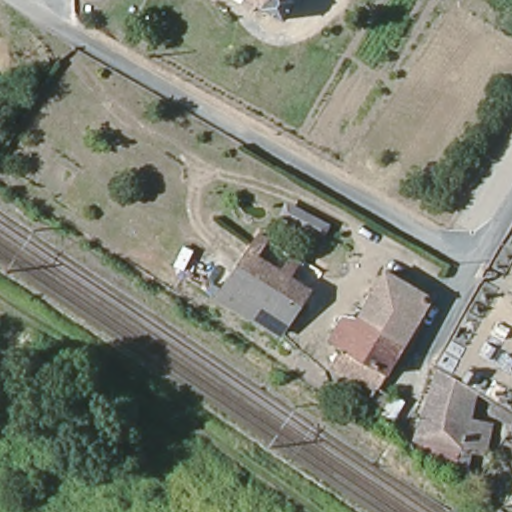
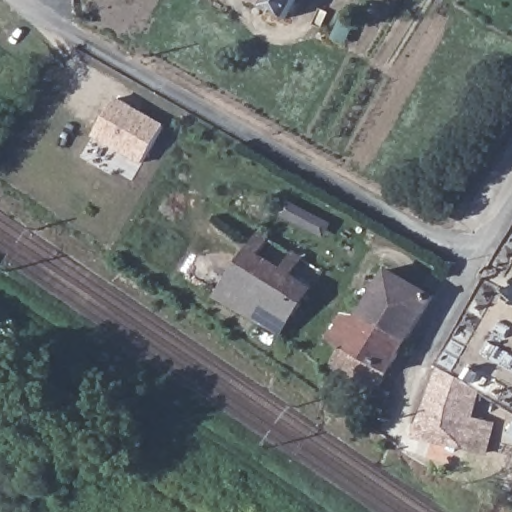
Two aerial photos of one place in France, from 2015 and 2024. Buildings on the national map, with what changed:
unchanged [(285,18),(254,0),(296,0),(285,18)]
new [(96,136),(115,101),(162,127),(144,161),(96,136)]
unchanged [(332,223),(325,239),(278,215),(286,200),(332,223)]
unchanged [(330,258),(301,303),(306,306),(300,316),(295,313),(282,334),(218,297),(259,232),(293,253),(297,246),(309,253),(312,246),(330,258)]
unchanged [(347,377),(330,366),(341,346),(331,340),(346,315),(357,321),(387,271),(433,298),(381,386),(393,394),(381,413),(367,408),(369,405),(346,394),(340,391),(347,377)]
unchanged [(440,374),(477,396),(472,422),(492,429),(486,454),(462,450),(456,470),(427,464),(430,446),(415,443),(440,374)]
unchanged [(512,425),(512,428),(510,427),(512,425)]

